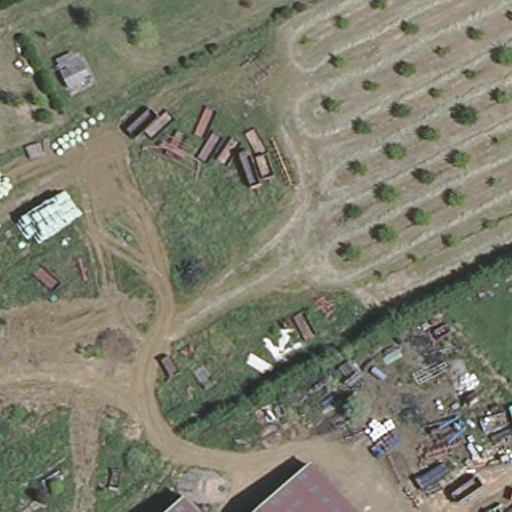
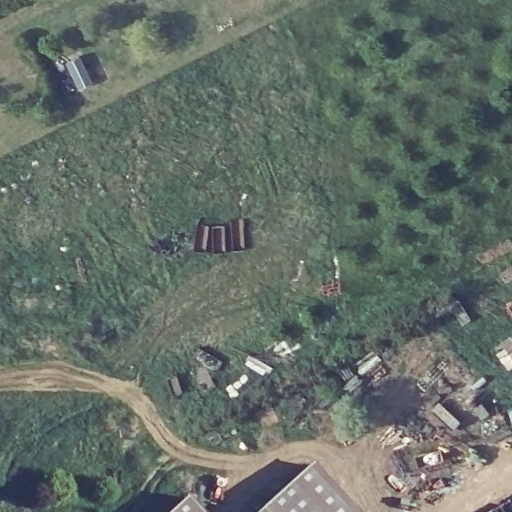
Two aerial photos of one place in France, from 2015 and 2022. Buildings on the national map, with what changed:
unchanged [(311,467),(353,512),(263,512),(311,467)]
unchanged [(198,512),(176,512),(188,501),(198,512)]

